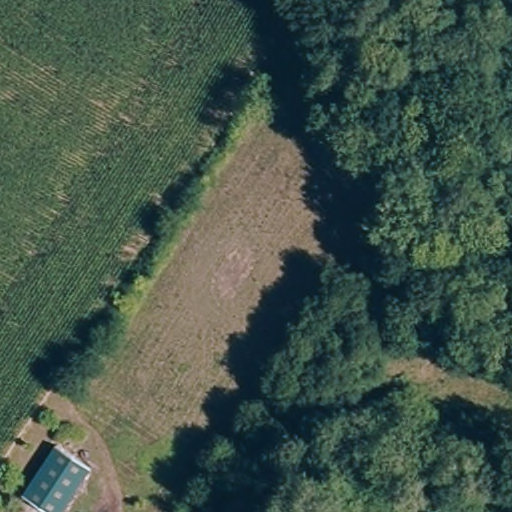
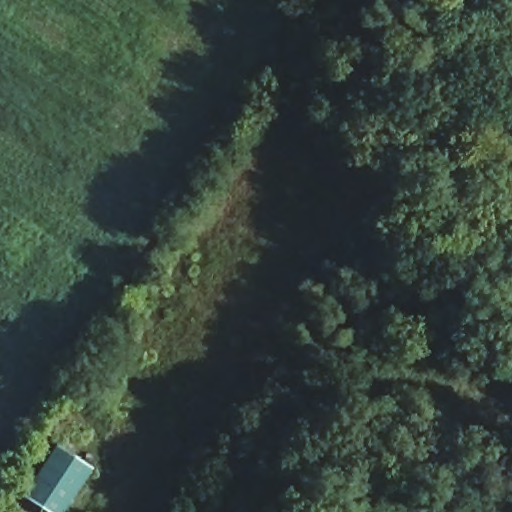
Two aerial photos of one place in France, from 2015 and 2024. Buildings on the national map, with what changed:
unchanged [(97,449),(63,499),(30,476),(64,426),(97,449)]

